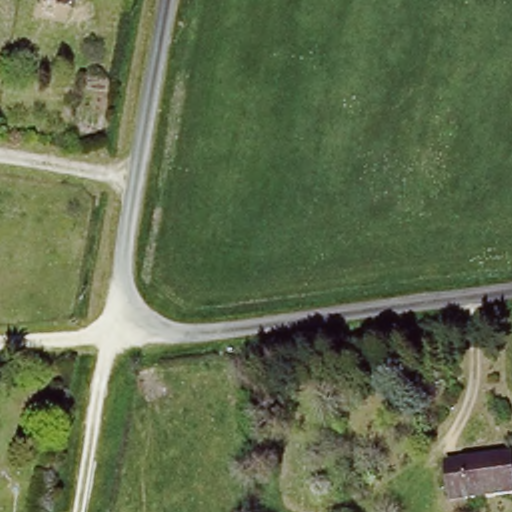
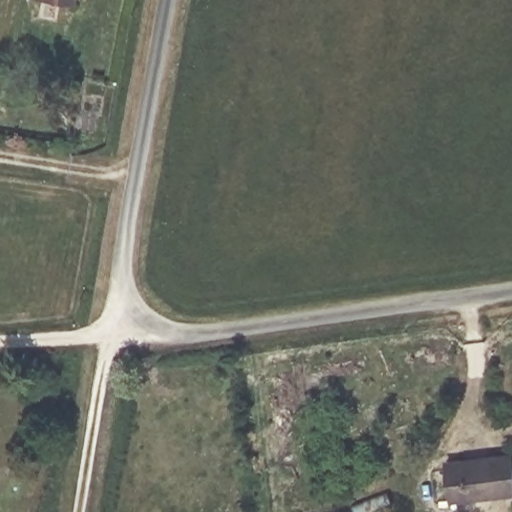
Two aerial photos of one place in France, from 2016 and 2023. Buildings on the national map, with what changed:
unchanged [(68,3),(53,0),(69,0),(68,3)]
unchanged [(512,477),(512,492),(448,502),(443,461),(508,452),(512,477)]

